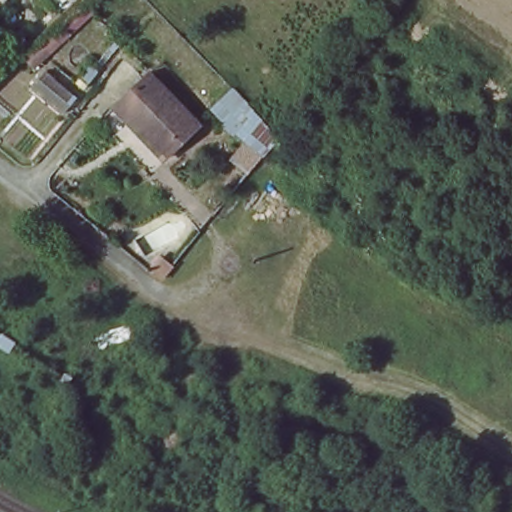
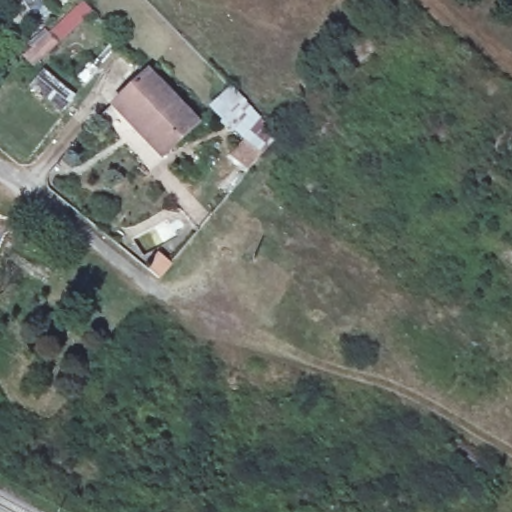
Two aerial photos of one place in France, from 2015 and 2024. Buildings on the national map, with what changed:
unchanged [(84,0),(92,10),(42,59),(32,49),(84,0)]
unchanged [(136,127),(114,104),(149,70),(198,122),(168,151),(163,156),(136,127)]
unchanged [(260,157),(230,133),(210,107),(227,93),(273,141),(260,157)]

